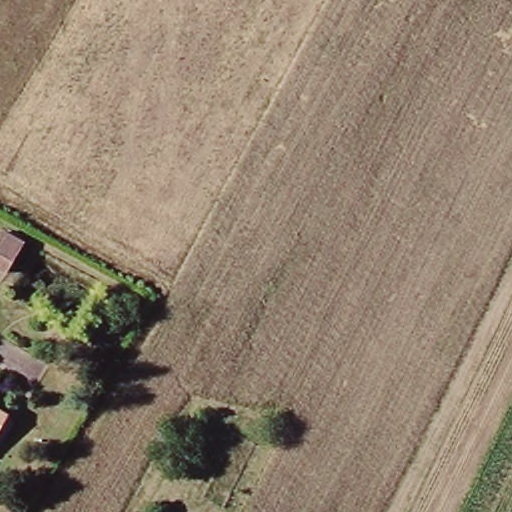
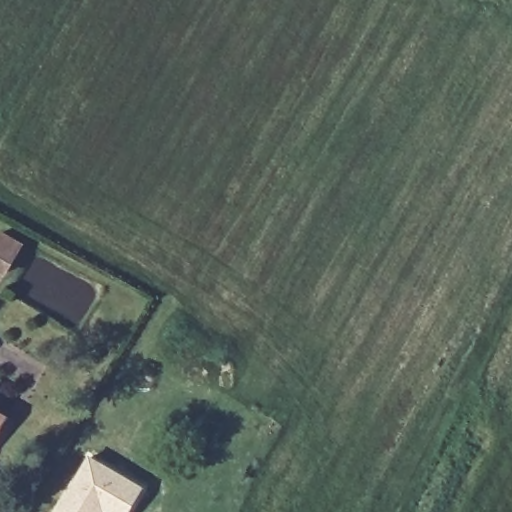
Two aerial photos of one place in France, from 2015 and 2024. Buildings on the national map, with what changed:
unchanged [(14,262),(0,253),(0,240),(8,227),(29,239),(14,262)]
unchanged [(0,434),(0,415),(8,420),(0,434)]
new [(142,488),(128,512),(110,512),(98,506),(103,509),(102,512),(58,512),(90,458),(142,488)]

